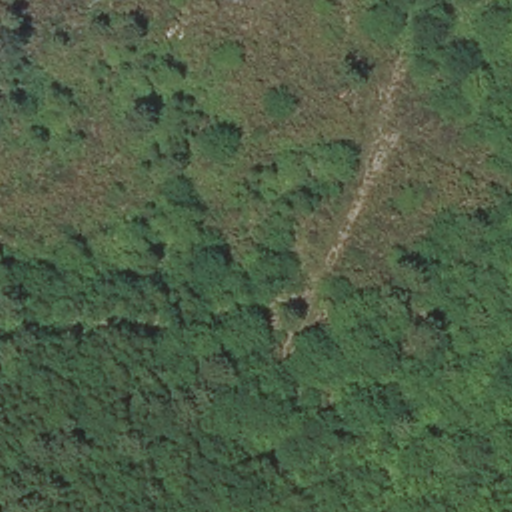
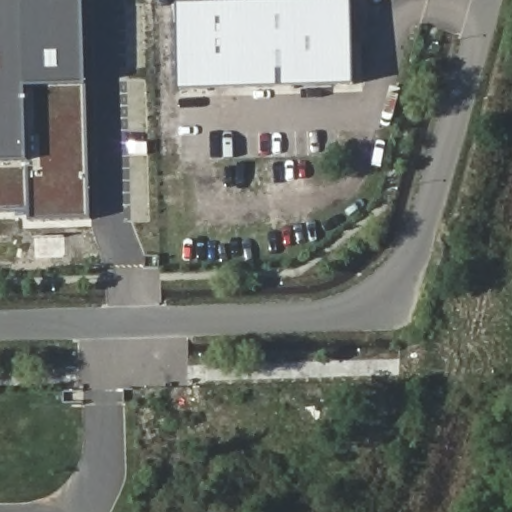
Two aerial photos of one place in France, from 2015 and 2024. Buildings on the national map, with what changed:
new [(30,219),(30,212),(0,213),(0,0),(83,0),(93,219),(30,219)]
new [(180,84),(178,0),(354,0),(357,78),(180,84)]

